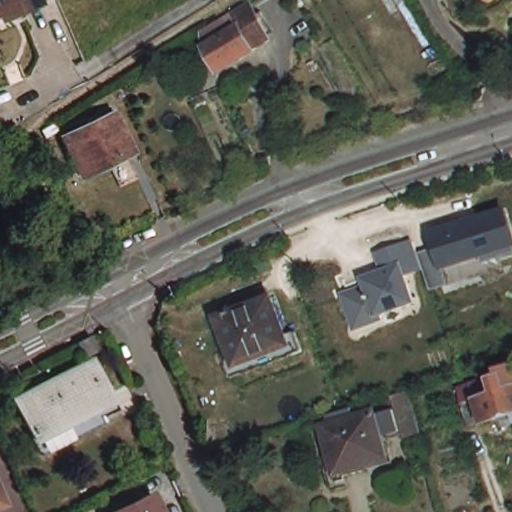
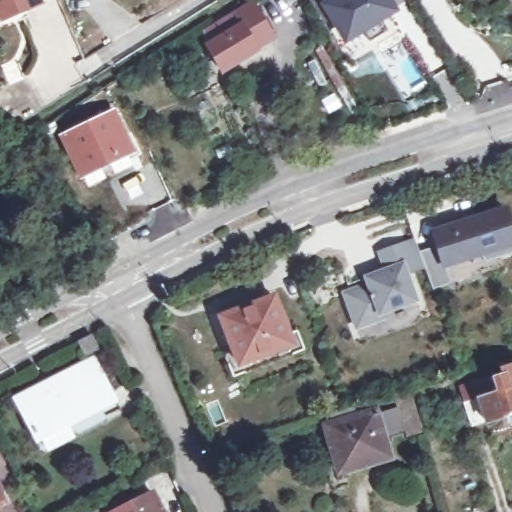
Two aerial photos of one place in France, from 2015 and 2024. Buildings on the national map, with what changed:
unchanged [(43,3),(23,12),(20,7),(0,15),(0,0),(42,0),(43,3)]
new [(330,19),(324,22),(308,0),(390,0),(398,13),(344,45),(330,19)]
unchanged [(223,73),(207,47),(206,35),(252,7),(272,40),(223,73)]
unchanged [(122,153),(72,177),(53,138),(65,132),(63,127),(83,117),(101,110),(122,153)]
unchanged [(341,293),(363,286),(360,277),(381,270),(376,254),(414,241),(419,254),(433,249),(428,233),(505,209),(512,234),(512,253),(485,262),(483,258),(444,271),(449,284),(431,291),(424,271),(407,277),(417,304),(383,316),(384,321),(354,332),(341,293)]
demolished [(306,267),(306,269),(286,276),(280,278),(275,263),(303,254),(306,267)]
unchanged [(304,349),(234,376),(226,358),(236,354),(220,317),(274,296),(289,333),(296,330),(304,349)]
unchanged [(80,353),(72,338),(86,332),(93,346),(80,353)]
unchanged [(38,451),(9,397),(89,356),(117,409),(38,451)]
unchanged [(491,422),(476,427),(467,403),(482,398),(478,385),(497,379),(497,380),(508,376),(508,375),(512,373),(512,417),(491,424),(491,422)]
unchanged [(339,493),(324,497),(317,475),(327,472),(314,431),(322,429),(319,420),(329,417),(337,414),(343,412),(347,422),(365,416),(367,421),(374,419),(386,415),(382,402),(399,397),(413,439),(396,445),(392,435),(373,441),(380,464),(356,472),(358,476),(335,482),(339,493)]
unchanged [(160,512),(104,512),(148,488),(160,512)]
unchanged [(3,506),(0,507),(0,498),(3,506)]

